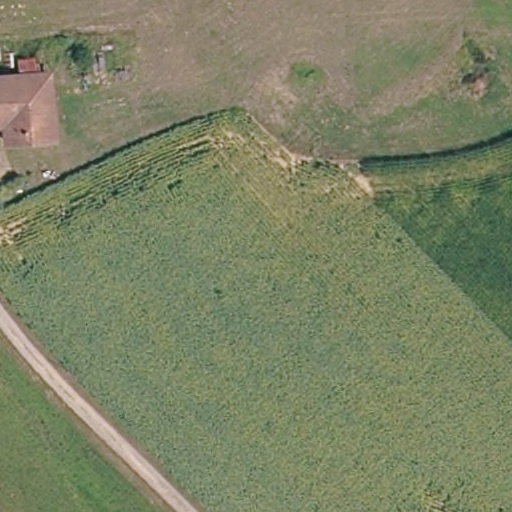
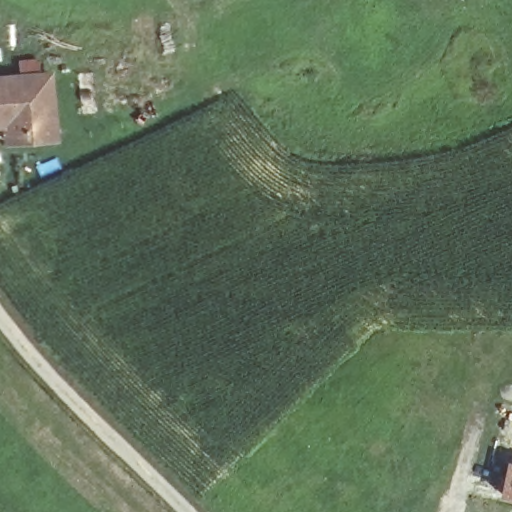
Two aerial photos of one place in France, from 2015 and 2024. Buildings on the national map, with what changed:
unchanged [(27,54),(44,54),(43,73),(52,73),(51,99),(49,138),(1,138),(0,125),(0,71),(25,72),(27,54)]
new [(512,463),(512,500),(499,497),(506,462),(512,463)]

